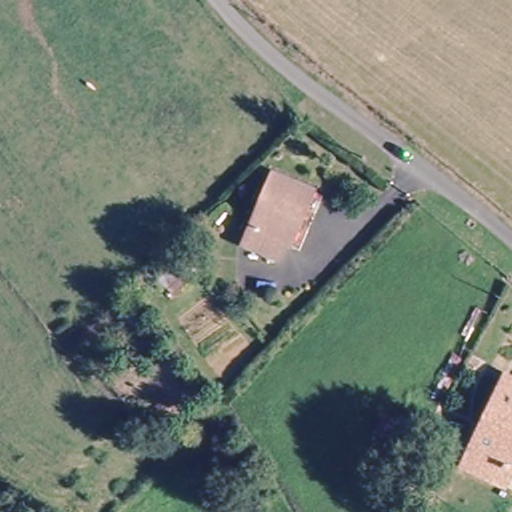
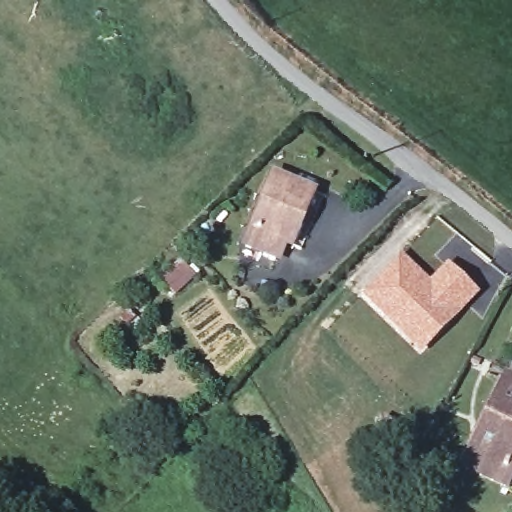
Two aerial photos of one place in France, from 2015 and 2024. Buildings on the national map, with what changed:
unchanged [(239,242),(274,175),(309,195),(283,247),(276,244),(268,257),(239,242)]
new [(402,254),(429,280),(446,263),(479,295),(420,354),(361,294),(402,254)]
unchanged [(504,378),(512,382),(512,467),(468,442),(504,378)]
unchanged [(503,485),(457,461),(468,442),(512,467),(503,485)]

